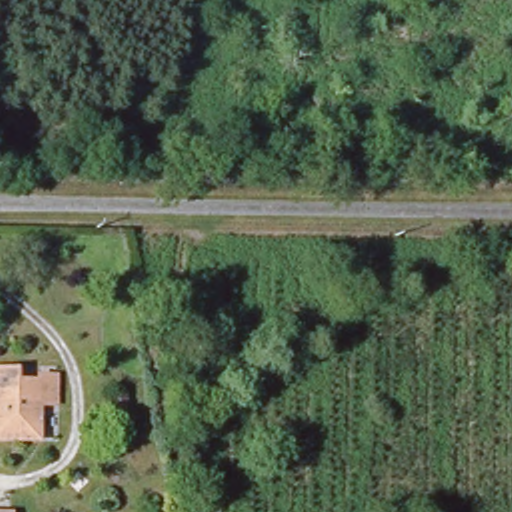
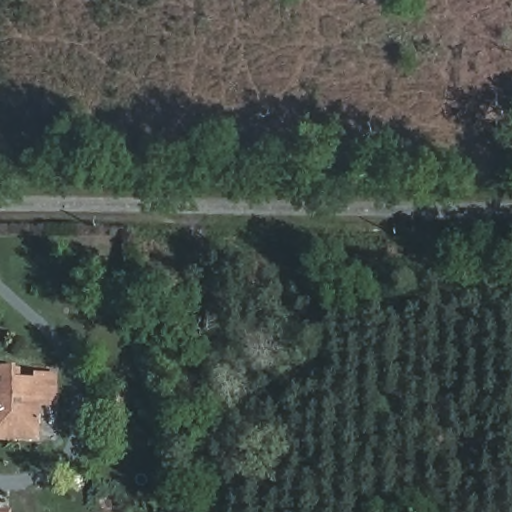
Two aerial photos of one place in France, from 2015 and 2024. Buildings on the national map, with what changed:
unchanged [(0,442),(0,374),(13,374),(14,382),(32,385),(35,378),(53,381),(53,404),(38,404),(34,445),(0,442)]
unchanged [(124,420),(104,420),(105,390),(127,391),(124,420)]

